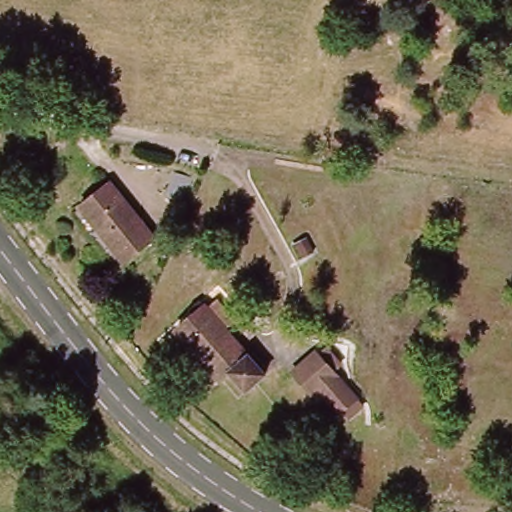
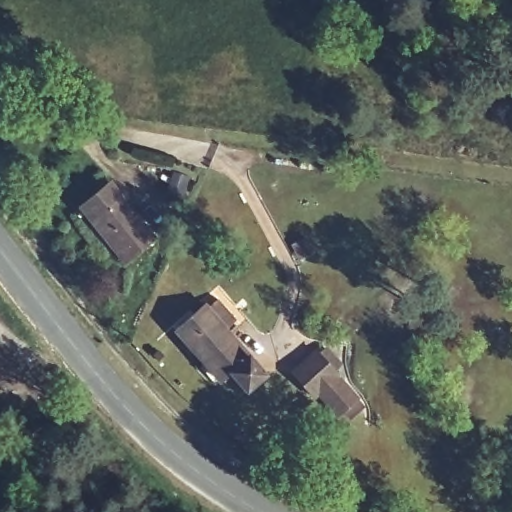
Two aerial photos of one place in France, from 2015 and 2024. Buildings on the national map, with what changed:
unchanged [(154,242),(125,264),(82,206),(112,184),(154,242)]
unchanged [(264,381),(245,361),(230,374),(188,324),(218,299),(220,302),(231,294),(248,315),(240,322),(279,366),(264,381)]
unchanged [(321,401),(315,405),(288,372),(313,352),(317,355),(324,349),(337,364),(330,371),(359,405),(345,417),(339,422),(321,401)]

